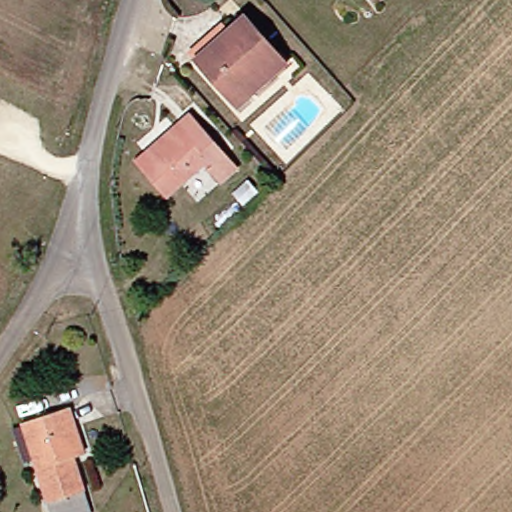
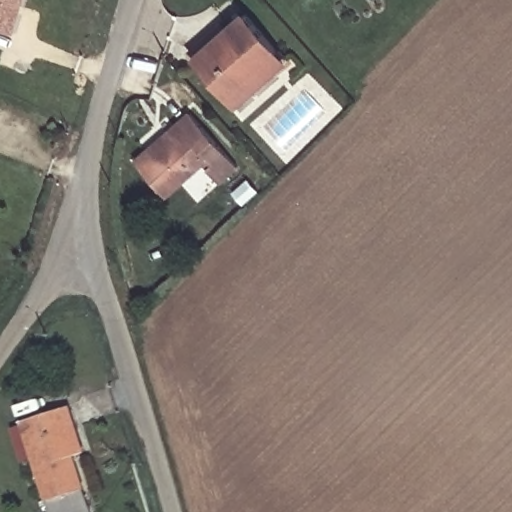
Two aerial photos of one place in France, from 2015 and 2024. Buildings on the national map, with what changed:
new [(0,26),(0,0),(25,0),(16,31),(0,26)]
unchanged [(287,60),(270,77),(273,81),(257,95),(253,91),(238,105),(195,58),(190,52),(222,23),(227,29),(245,14),(287,60)]
unchanged [(237,166),(220,182),(208,168),(212,164),(207,158),(165,195),(140,166),(135,161),(177,124),(190,113),(237,166)]
unchanged [(250,179),(260,191),(245,205),(235,194),(250,179)]
unchanged [(81,450),(83,458),(73,461),(83,494),(89,512),(50,512),(47,505),(20,415),(41,408),(45,420),(70,412),(76,433),(81,450)]

